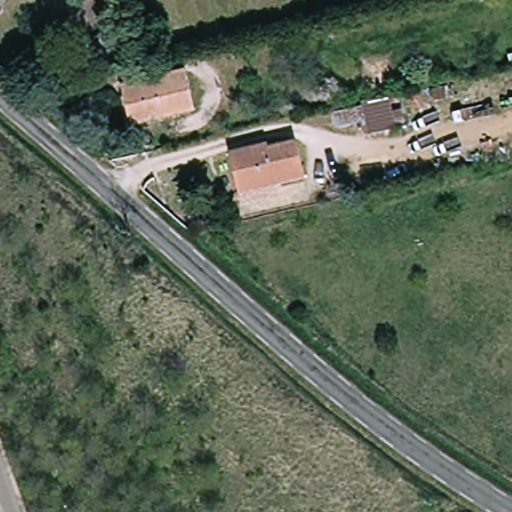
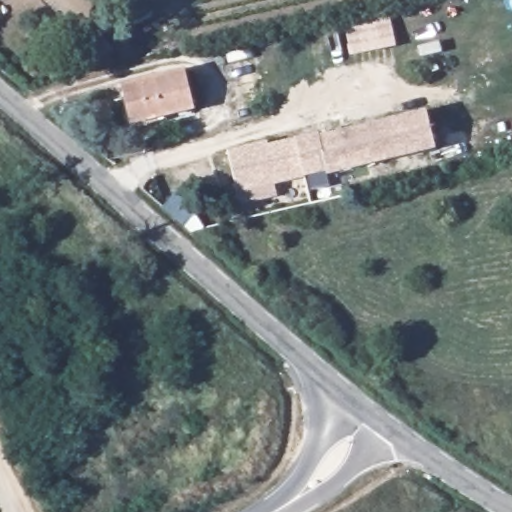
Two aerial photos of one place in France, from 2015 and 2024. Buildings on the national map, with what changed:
unchanged [(196,112),(130,127),(120,90),(187,75),(196,112)]
demolished [(405,129),(376,137),(372,122),(342,129),(337,111),(396,98),(405,129)]
new [(297,139),(320,133),(321,138),(428,112),(437,149),(329,177),(328,172),(306,177),(297,143),(297,139)]
unchanged [(273,144),(274,149),(297,143),(307,181),(245,197),(233,154),(273,144)]

